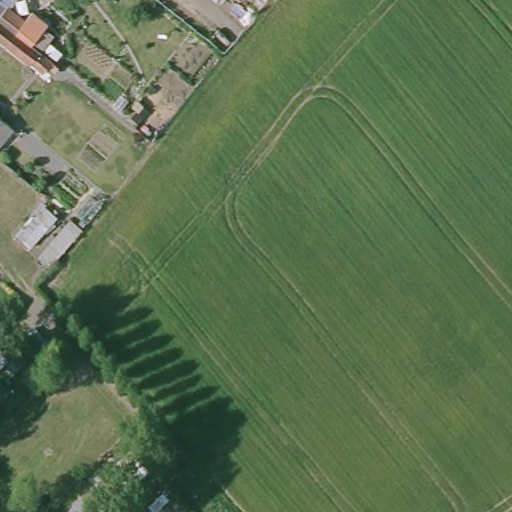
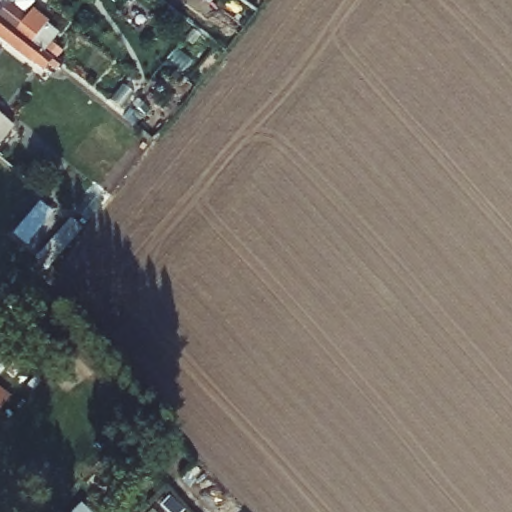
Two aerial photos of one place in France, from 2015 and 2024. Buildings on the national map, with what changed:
unchanged [(8,13),(24,25),(31,17),(35,21),(48,31),(33,50),(0,23),(0,0),(9,0),(14,3),(8,13)]
unchanged [(29,68),(0,44),(0,23),(33,50),(40,56),(50,64),(40,76),(29,68)]
unchanged [(0,146),(0,113),(16,127),(0,146)]

